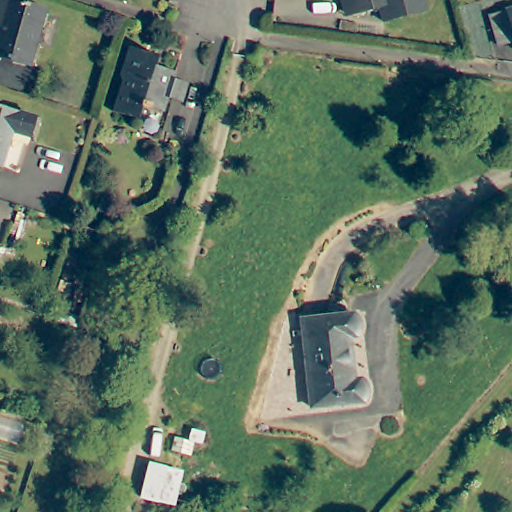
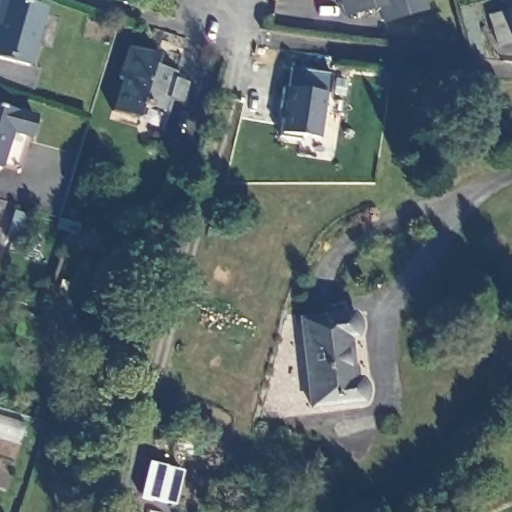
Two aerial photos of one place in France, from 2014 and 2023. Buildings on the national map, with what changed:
unchanged [(45,9),(27,66),(0,58),(0,2),(1,0),(16,0),(45,9)]
unchanged [(426,11),(384,22),(380,8),(350,16),(346,0),(423,0),(426,11)]
unchanged [(498,47),(490,15),(512,9),(512,43),(498,47)]
unchanged [(127,80),(125,75),(134,47),(162,56),(159,66),(180,72),(178,79),(192,83),(186,102),(173,98),(169,112),(155,108),(155,110),(146,108),(143,118),(118,110),(127,80)]
new [(300,136),(300,139),(280,137),(281,132),(286,89),(289,89),(293,70),(331,74),(328,95),(325,94),(320,138),(300,136)]
unchanged [(0,168),(0,106),(36,118),(25,151),(18,174),(0,169),(0,168)]
unchanged [(86,228),(104,234),(99,250),(81,245),(86,228)]
unchanged [(352,314),(354,315),(355,317),(357,320),(358,322),(358,325),(358,327),(358,329),(358,331),(357,334),(355,336),(355,337),(348,338),(353,379),(359,379),(361,381),(363,382),(364,385),(365,387),(365,390),(365,392),(365,394),(365,396),(364,399),(363,401),(362,402),(311,408),(301,319),(352,314)]
unchanged [(155,501),(141,497),(148,465),(155,467),(180,473),(179,479),(174,500),(173,505),(155,501)]

